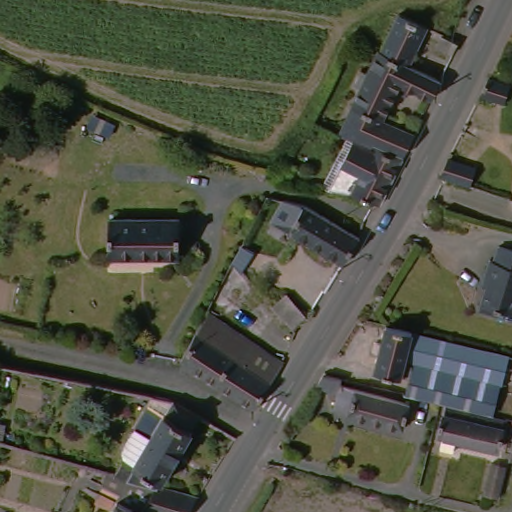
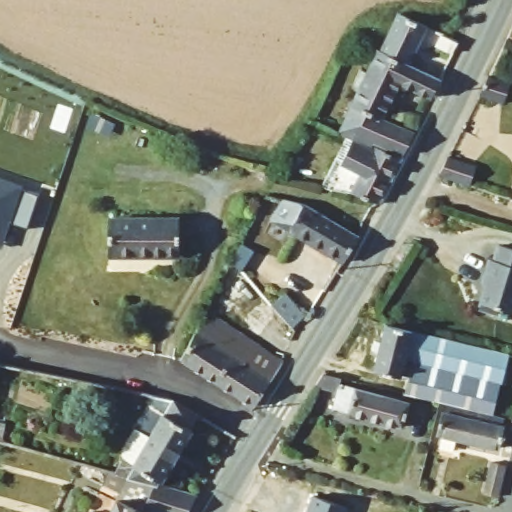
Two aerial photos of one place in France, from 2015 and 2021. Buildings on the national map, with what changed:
unchanged [(408,69),(407,70),(380,57),(381,55),(399,19),(426,32),(408,69)]
unchanged [(399,87),(381,122),(411,137),(401,157),(373,144),(371,148),(326,131),(319,129),(333,101),(352,110),(379,54),(381,55),(380,57),(407,70),(408,69),(409,70),(419,74),(439,84),(429,102),(399,87)]
unchanged [(505,107),(481,100),(491,81),(512,88),(505,107)]
unchanged [(354,144),(369,153),(372,148),(399,160),(374,205),(349,196),(346,195),(326,191),(354,144)]
unchanged [(477,169),(470,189),(441,179),(450,160),(477,169)]
new [(19,186),(18,187),(38,194),(26,232),(6,225),(4,232),(0,243),(0,180),(19,186)]
unchanged [(512,200),(512,205),(511,204),(512,200)]
unchanged [(339,269),(306,247),(286,235),(299,212),(314,218),(317,219),(321,222),(354,243),(339,269)]
unchanged [(106,261),(108,222),(178,222),(174,261),(106,261)]
unchanged [(252,258),(238,277),(229,268),(241,251),(252,258)]
unchanged [(494,317),(493,323),(474,318),(483,287),(479,286),(484,269),(487,270),(491,256),(512,261),(512,313),(510,321),(494,317)]
unchanged [(274,307),(288,295),(306,317),(293,329),(274,307)]
unchanged [(278,369),(249,413),(193,375),(186,391),(168,383),(171,378),(176,365),(178,366),(204,316),(278,369)]
unchanged [(493,421),(464,414),(439,408),(431,406),(410,401),(403,400),(409,374),(401,372),(399,384),(374,377),(376,369),(374,368),(376,361),(378,361),(382,347),(381,346),(383,339),(384,339),(386,331),(461,350),(474,353),(512,362),(512,375),(505,374),(493,421)]
unchanged [(399,433),(331,414),(336,397),(312,391),(319,381),(328,383),(339,385),(338,391),(406,410),(399,433)]
unchanged [(112,464),(125,469),(143,439),(129,432),(147,402),(159,404),(163,405),(188,421),(180,434),(182,435),(149,492),(116,483),(104,479),(112,464)]
unchanged [(442,422),(444,412),(504,426),(501,440),(503,441),(501,447),(499,446),(497,455),(454,445),(453,451),(443,449),(444,443),(438,441),(438,440),(431,438),(436,420),(442,422)]
unchanged [(512,447),(512,453),(511,453),(512,447)]
unchanged [(484,493),(492,465),(506,469),(499,497),(484,493)]
unchanged [(149,492),(186,501),(180,512),(101,512),(116,483),(149,492)]

